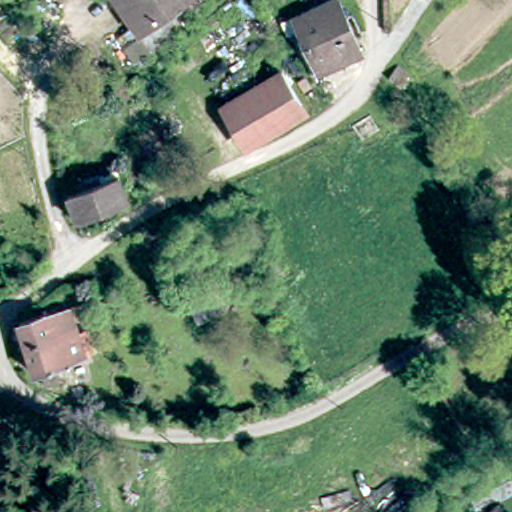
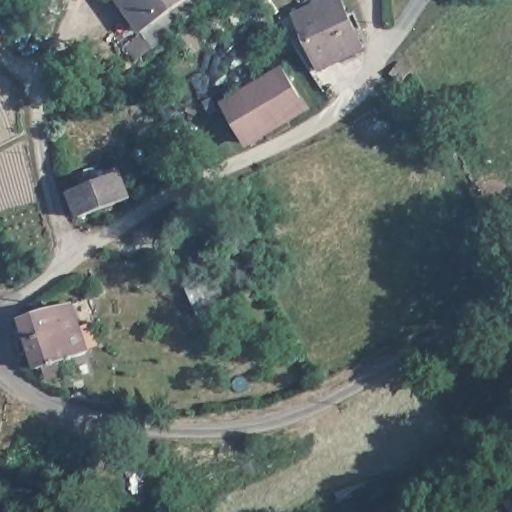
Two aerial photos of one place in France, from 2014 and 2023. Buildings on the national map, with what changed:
unchanged [(138,0),(181,0),(154,20),(138,0)]
unchanged [(187,25),(155,49),(141,30),(154,20),(181,0),(203,0),(180,16),(187,25)]
unchanged [(302,33),(292,37),(285,24),(340,0),(342,0),(364,51),(319,71),(302,33)]
unchanged [(395,58),(409,68),(403,75),(390,65),(395,58)]
unchanged [(248,146),(224,105),(285,71),(307,114),(248,146)]
unchanged [(122,180),(132,206),(80,225),(71,200),(122,180)]
unchanged [(59,363),(62,374),(46,378),(43,366),(37,368),(24,315),(70,303),(84,357),(59,363)]

